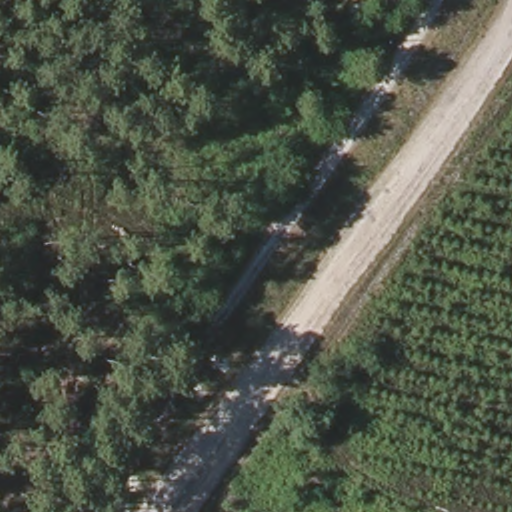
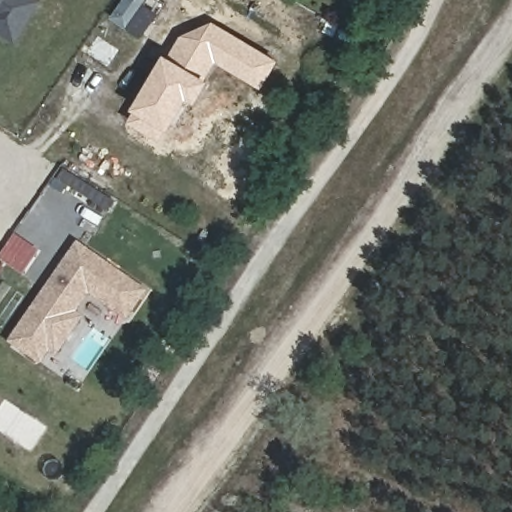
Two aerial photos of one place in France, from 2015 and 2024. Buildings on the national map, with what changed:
new [(15,43),(0,33),(0,0),(43,0),(15,43)]
new [(124,0),(148,0),(130,25),(114,14),(124,0)]
new [(262,90),(215,62),(207,77),(210,80),(197,103),(188,97),(169,130),(161,143),(128,122),(135,110),(133,108),(165,53),(170,56),(181,36),(214,21),(279,61),(262,90)]
new [(79,244),(144,290),(126,315),(89,288),(72,312),(79,317),(55,350),(49,345),(39,359),(12,339),(79,244)]

